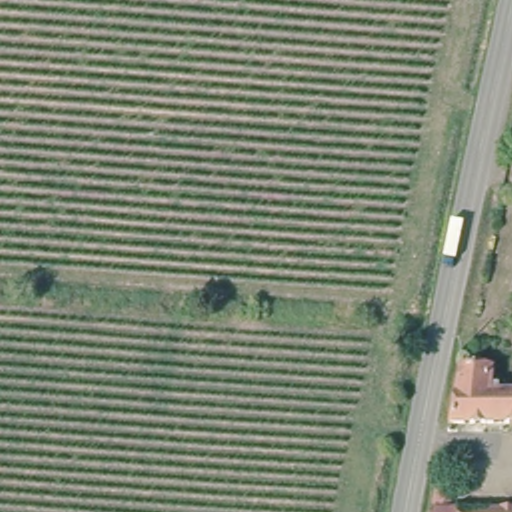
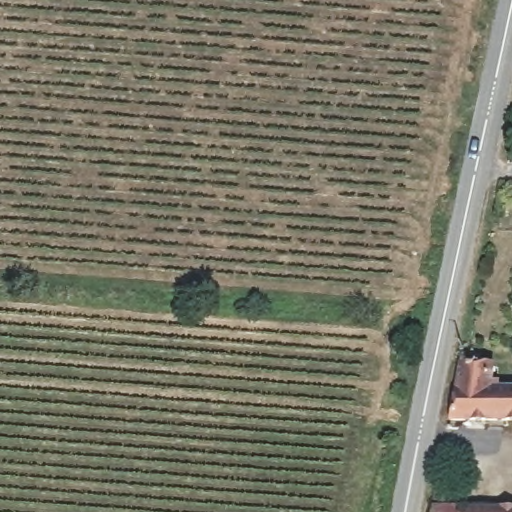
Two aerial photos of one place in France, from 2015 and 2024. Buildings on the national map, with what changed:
unchanged [(467,351),(475,352),(475,363),(496,362),(495,378),(502,378),(501,385),(512,385),(512,421),(451,419),(465,362),(467,351)]
unchanged [(437,501),(512,503),(512,512),(435,512),(437,501)]

